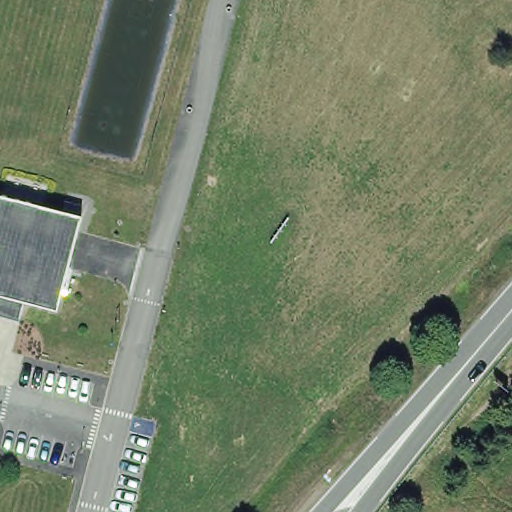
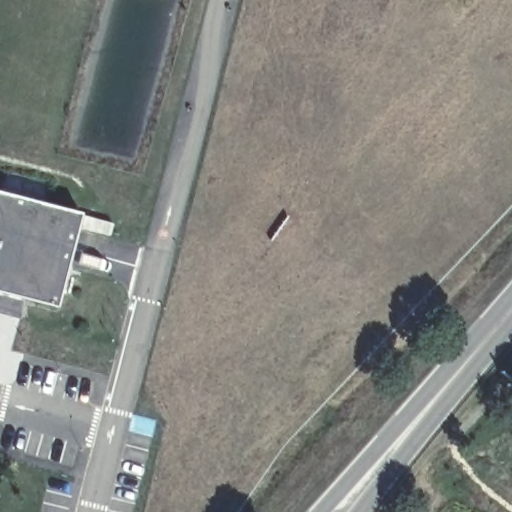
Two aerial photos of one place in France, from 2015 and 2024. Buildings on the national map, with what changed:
unchanged [(33,265),(0,257),(0,196),(50,208),(53,209),(37,266),(33,265)]
unchanged [(61,272),(57,271),(37,266),(53,209),(74,215),(77,215),(61,272)]
unchanged [(6,297),(0,296),(0,257),(33,265),(37,266),(57,271),(61,272),(61,273),(56,298),(55,309),(24,301),(20,318),(3,314),(6,297)]

